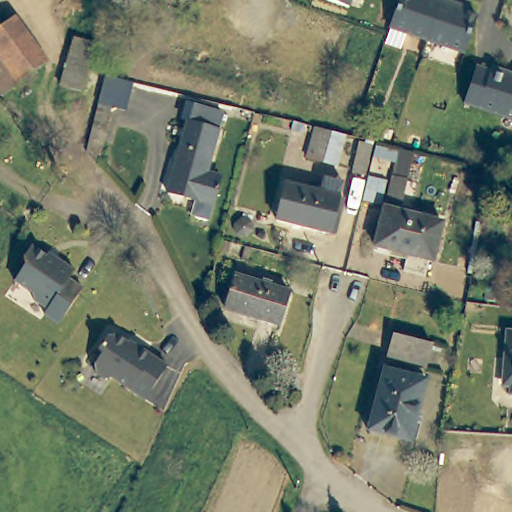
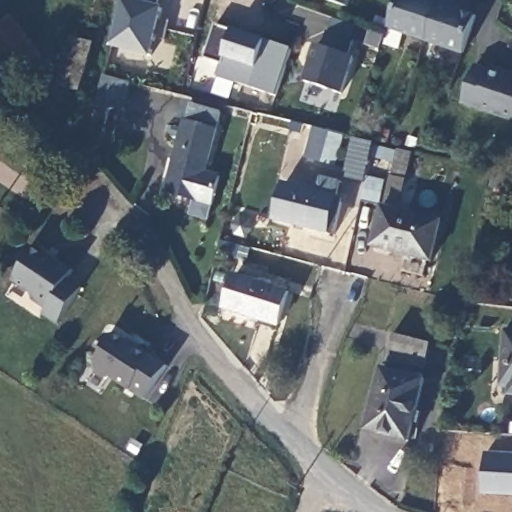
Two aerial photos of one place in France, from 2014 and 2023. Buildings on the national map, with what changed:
new [(114,48),(127,0),(164,0),(163,9),(150,57),(114,48)]
unchanged [(325,0),(349,0),(346,7),(325,0)]
unchanged [(453,4),(451,9),(473,17),(460,54),(385,27),(395,0),(442,0),(453,4)]
unchanged [(0,89),(0,24),(12,14),(45,58),(4,94),(0,89)]
new [(278,97),(250,87),(219,76),(223,64),(207,59),(217,26),(235,29),(269,40),(294,50),(278,97)]
new [(306,82),(317,46),(323,48),(329,31),(354,40),(355,59),(344,94),(306,82)]
unchanged [(71,35),(93,42),(82,82),(80,88),(59,83),(65,60),(71,35)]
unchanged [(472,66),(486,71),(488,67),(505,72),(503,76),(512,79),(512,120),(459,103),(472,66)]
unchanged [(112,108),(103,138),(91,135),(106,78),(129,84),(122,112),(112,108)]
unchanged [(219,175),(212,204),(168,194),(184,122),(186,122),(189,107),(220,113),(216,129),(206,173),(219,175)]
unchanged [(330,164),(318,160),(304,156),(310,126),(326,130),(322,146),(335,150),(330,164)]
unchanged [(365,146),(359,174),(347,173),(353,144),(365,146)]
unchanged [(409,157),(403,180),(390,176),(397,153),(409,157)]
unchanged [(491,170),(512,175),(512,183),(511,188),(488,182),(491,170)]
unchanged [(336,197),(327,234),(276,220),(286,181),(336,197)]
unchanged [(437,222),(428,260),(373,244),(383,206),(437,222)]
unchanged [(17,258),(27,245),(40,254),(43,250),(68,269),(64,277),(76,287),(55,322),(38,313),(42,306),(29,300),(29,293),(9,280),(22,262),(17,258)]
unchanged [(289,292),(280,325),(228,308),(237,276),(289,292)]
unchanged [(501,359),(503,331),(512,332),(512,396),(507,396),(499,395),(501,359)]
unchanged [(92,348),(101,335),(109,332),(130,346),(132,343),(162,363),(139,397),(106,376),(100,378),(89,371),(88,363),(97,351),(92,348)]
unchanged [(433,349),(427,375),(389,364),(396,338),(433,349)]
unchanged [(370,437),(385,377),(423,387),(409,446),(370,437)]

